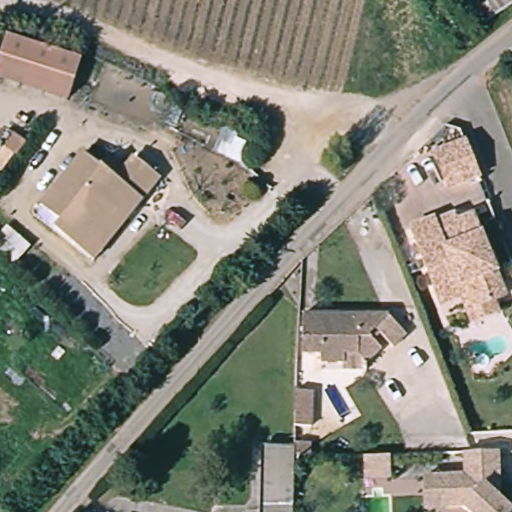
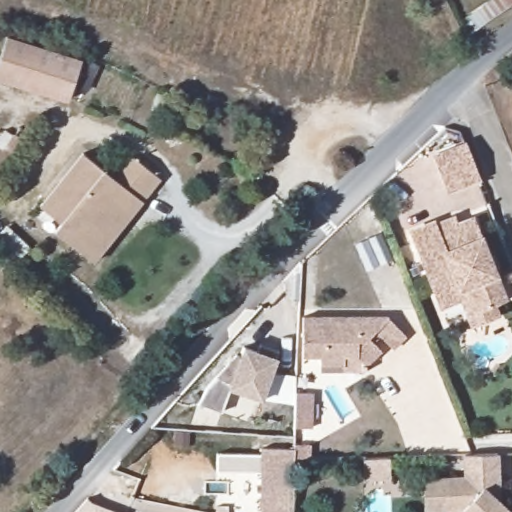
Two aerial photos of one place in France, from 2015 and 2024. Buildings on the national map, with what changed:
unchanged [(82,62),(67,99),(0,71),(0,61),(13,33),(82,62)]
unchanged [(480,177),(449,190),(434,158),(466,144),(480,177)]
unchanged [(134,194),(108,225),(93,211),(77,228),(65,218),(43,199),(85,152),(116,177),(136,155),(161,179),(142,201),(134,194)]
unchanged [(94,258),(57,227),(65,218),(77,228),(93,211),(108,225),(134,194),(142,201),(94,258)]
unchanged [(472,325),(463,297),(440,306),(438,299),(413,230),(431,221),(437,232),(469,220),(499,302),(493,305),(496,317),(472,325)]
unchanged [(389,312),(410,332),(400,342),(387,329),(376,340),(385,349),(374,358),(366,351),(351,351),(352,359),(325,358),(325,351),(307,350),(307,312),(389,312)]
new [(276,356),(262,399),(231,387),(221,412),(200,402),(223,365),(231,368),(239,344),(276,356)]
unchanged [(309,398),(309,428),(295,428),(296,399),(309,398)]
unchanged [(266,464),(267,448),(272,448),(295,448),(295,444),(308,444),(307,461),(294,461),(293,512),(265,512),(266,464)]
unchanged [(510,512),(475,512),(474,511),(457,511),(438,511),(436,480),(456,480),(468,479),(468,455),(473,455),(500,453),(502,505),(510,512)]

